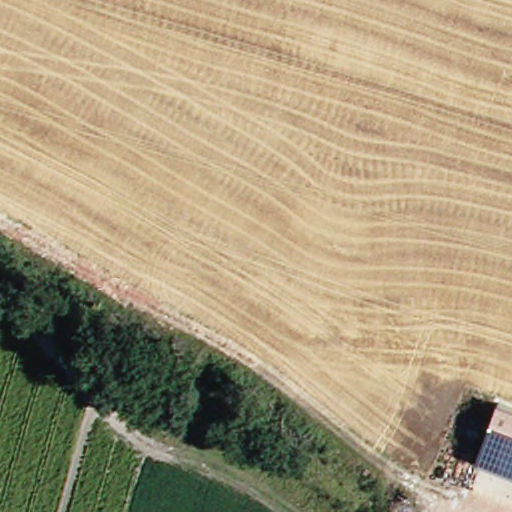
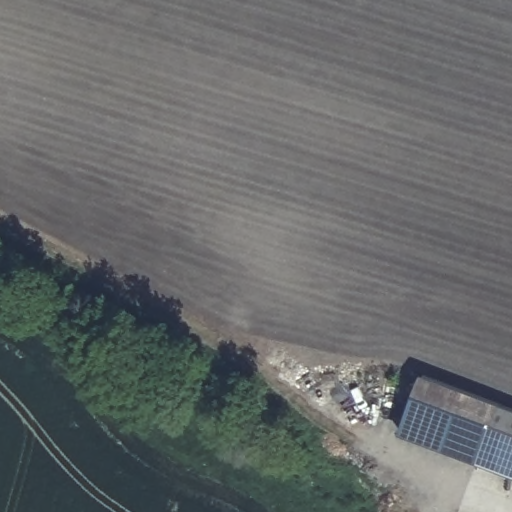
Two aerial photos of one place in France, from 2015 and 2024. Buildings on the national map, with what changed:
new [(402,433),(422,373),(499,402),(477,459),(402,433)]
unchanged [(499,402),(512,407),(512,472),(477,459),(499,402)]

